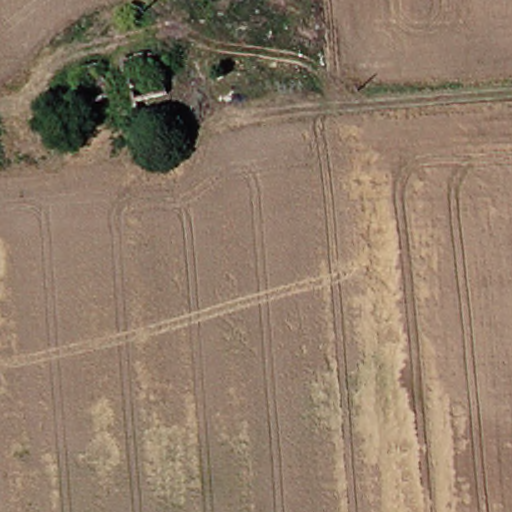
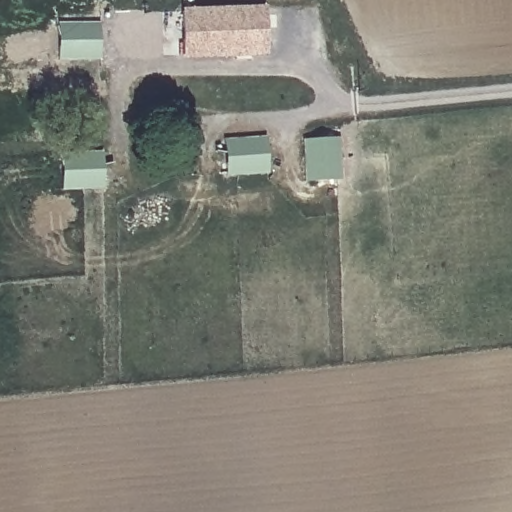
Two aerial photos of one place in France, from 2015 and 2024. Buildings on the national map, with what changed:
new [(264,5),(266,55),(183,58),(181,8),(264,5)]
new [(100,22),(101,58),(61,60),(59,24),(100,22)]
unchanged [(97,94),(84,61),(110,51),(122,85),(97,94)]
demolished [(142,121),(129,84),(163,74),(175,112),(142,121)]
unchanged [(179,128),(147,137),(142,121),(175,112),(179,128)]
new [(226,175),(224,139),(265,136),(268,171),(226,175)]
new [(303,139),(339,136),(342,179),(305,181),(303,139)]
new [(102,151),(103,187),(63,189),(61,153),(102,151)]

